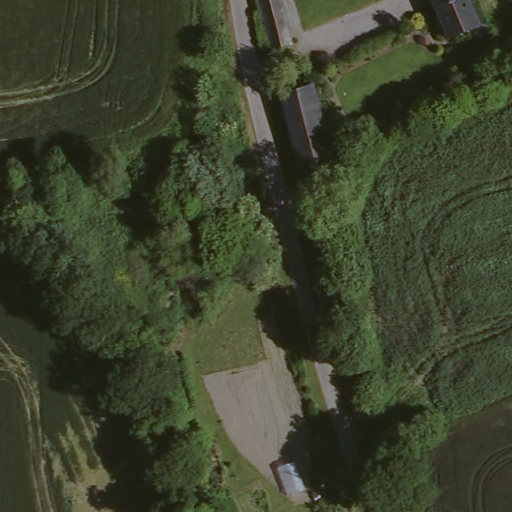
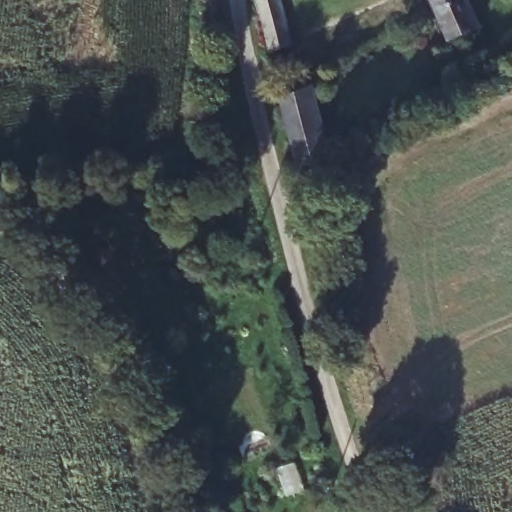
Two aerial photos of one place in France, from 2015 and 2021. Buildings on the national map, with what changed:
unchanged [(296,36),(271,45),(258,0),(283,0),(296,36)]
unchanged [(481,32),(456,45),(434,0),(466,0),(481,32)]
unchanged [(311,82),(331,154),(304,162),(284,90),(311,82)]

